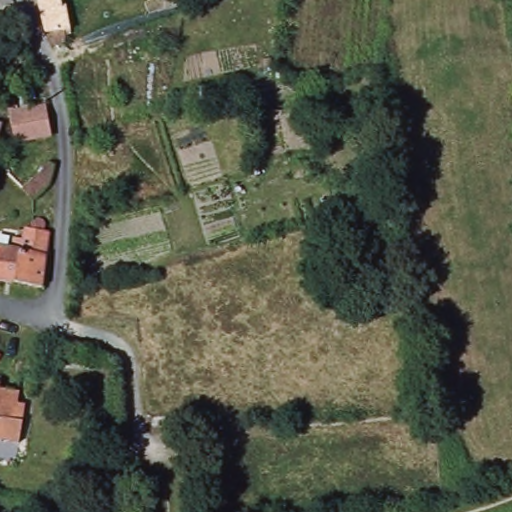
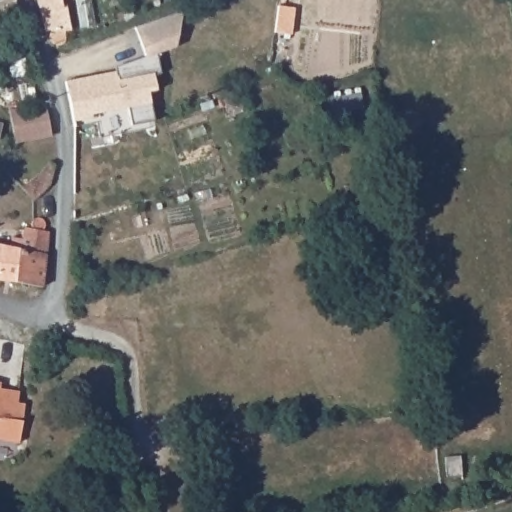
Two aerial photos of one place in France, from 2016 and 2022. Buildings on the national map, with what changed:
unchanged [(66,0),(67,3),(69,15),(70,21),(71,30),(66,30),(66,34),(66,36),(65,36),(64,38),(62,40),(59,40),(54,40),(51,38),(50,35),(50,30),(52,27),(46,28),(44,22),(40,6),(38,0),(62,0),(62,1),(66,0)]
new [(116,71),(115,68),(145,56),(135,28),(183,11),(178,46),(157,54),(161,73),(155,75),(157,91),(150,93),(154,120),(132,124),(130,111),(74,121),(66,81),(116,71)]
unchanged [(46,106),(47,106),(52,136),(16,143),(15,141),(9,111),(26,109),(29,108),(46,106)]
unchanged [(2,125),(0,134),(0,124),(2,125)]
unchanged [(35,173),(49,157),(55,160),(51,171),(46,185),(34,196),(22,184),(35,173)]
unchanged [(11,278),(0,276),(0,240),(11,242),(13,232),(23,234),(26,222),(32,224),(32,220),(32,218),(34,215),(36,214),(39,213),(42,214),(44,215),(45,217),(46,220),(46,222),(45,224),(43,226),(49,227),(42,283),(11,278)]
unchanged [(19,387),(17,398),(25,399),(19,439),(0,435),(0,384),(19,387)]
unchanged [(138,467),(140,480),(125,482),(123,470),(138,467)]

